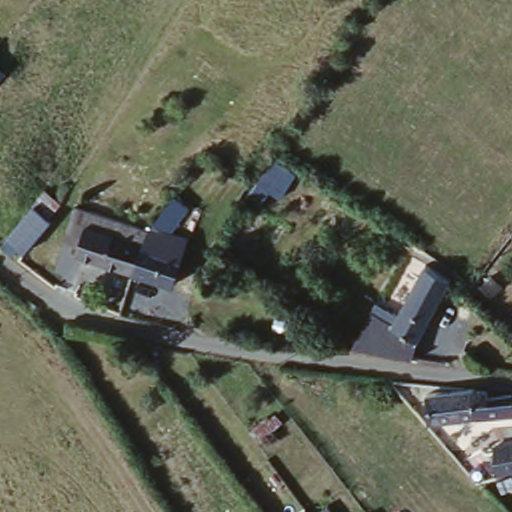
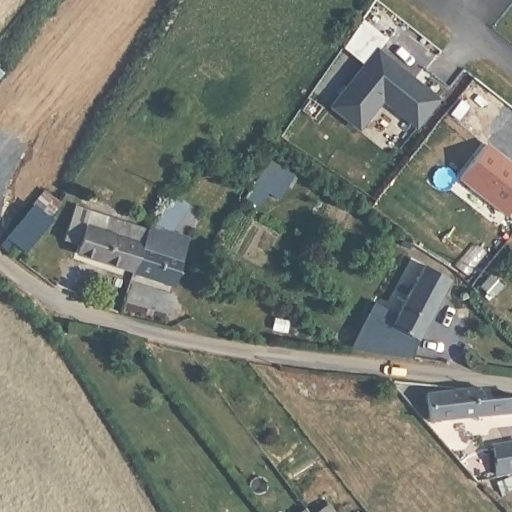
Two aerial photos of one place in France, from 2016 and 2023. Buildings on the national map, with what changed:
new [(439,96),(416,127),(382,102),(359,131),(328,107),(378,47),(439,96)]
unchanged [(0,85),(0,65),(10,74),(0,85)]
new [(460,178),(490,142),(512,160),(512,211),(507,218),(460,178)]
new [(298,176),(281,201),(269,194),(262,206),(246,195),(270,158),(298,176)]
unchanged [(12,251),(0,243),(0,237),(27,205),(42,218),(34,227),(12,251)]
unchanged [(176,282),(133,271),(77,256),(87,217),(112,224),(114,222),(149,227),(151,225),(183,232),(176,282)]
unchanged [(360,322),(387,324),(422,271),(451,285),(416,347),(415,360),(387,358),(361,353),(360,322)]
unchanged [(420,394),(468,388),(470,390),(482,392),(484,398),(508,395),(510,412),(468,417),(426,423),(420,394)]
unchanged [(493,438),(512,434),(512,462),(498,465),(493,438)]
unchanged [(357,504),(363,512),(348,512),(357,504)]

